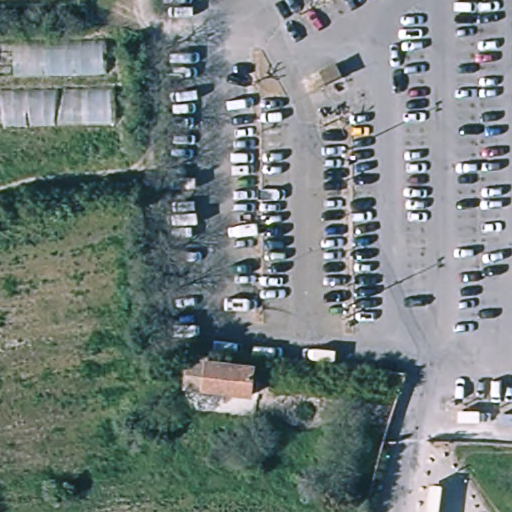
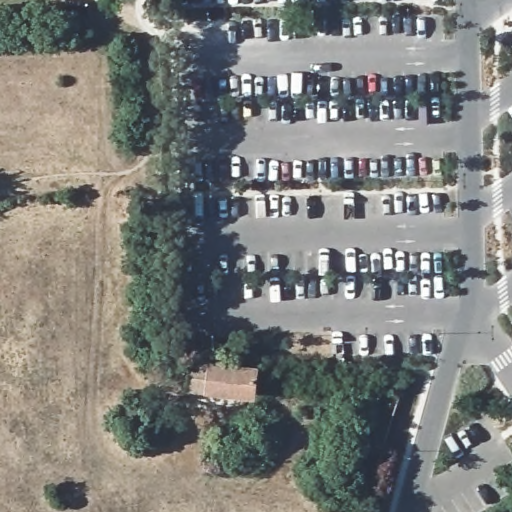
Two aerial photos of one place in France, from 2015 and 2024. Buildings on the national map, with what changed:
demolished [(116,33),(120,119),(0,122),(0,33),(116,33)]
demolished [(320,59),(329,54),(335,52),(343,68),(338,71),(328,75),(320,59)]
unchanged [(212,364),(254,368),(251,394),(188,386),(189,355),(213,357),(212,364)]

